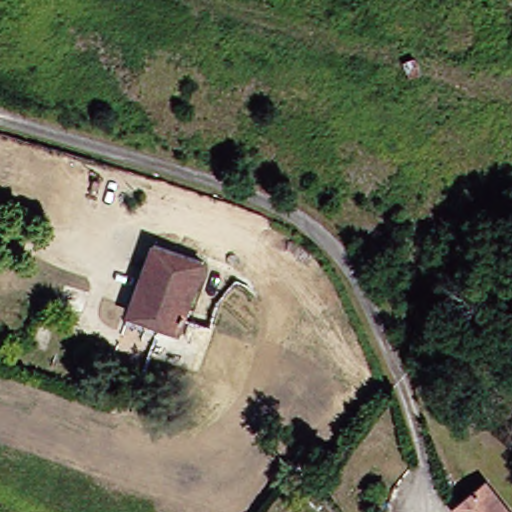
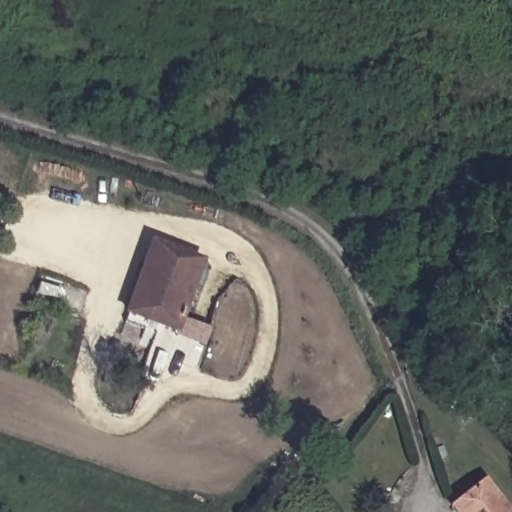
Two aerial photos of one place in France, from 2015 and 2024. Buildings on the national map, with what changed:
unchanged [(466,31),(467,53),(448,53),(448,32),(466,31)]
unchanged [(137,339),(141,328),(127,323),(153,242),(200,258),(174,338),(152,332),(150,343),(137,339)]
unchanged [(450,512),(448,510),(454,505),(480,483),(503,512),(450,512)]

